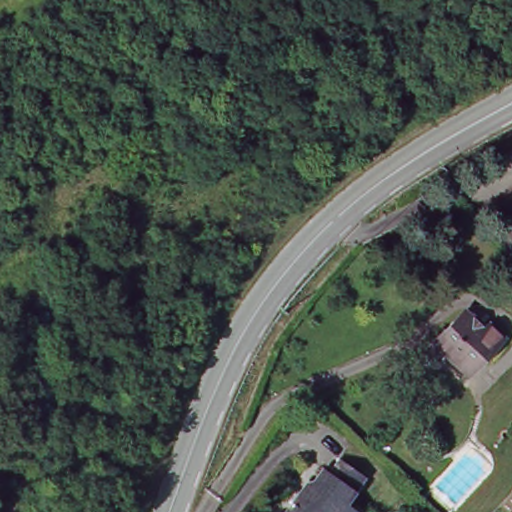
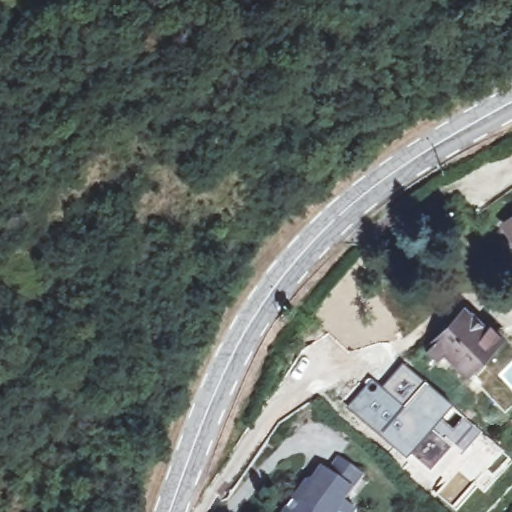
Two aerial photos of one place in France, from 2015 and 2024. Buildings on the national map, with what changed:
unchanged [(509,155),(512,152),(512,156),(509,155)]
unchanged [(510,227),(512,226),(512,230),(510,227)]
unchanged [(430,365),(422,355),(460,316),(480,335),(485,330),(499,344),(461,382),(437,358),(430,365)]
new [(404,365),(427,384),(455,408),(426,440),(410,461),(408,465),(346,409),(370,377),(382,388),(404,365)]
new [(426,440),(455,408),(483,433),(463,455),(455,449),(425,478),(410,461),(426,440)]
unchanged [(507,433),(512,427),(512,437),(507,433)]
new [(435,492),(443,483),(440,480),(434,486),(425,478),(455,449),(463,455),(483,433),(505,453),(475,485),(453,510),(435,492)]
unchanged [(300,510),(300,484),(310,482),(317,470),(323,473),(332,460),(357,475),(348,490),(341,501),(352,509),(356,512),(285,512),(286,510),(300,510)]

